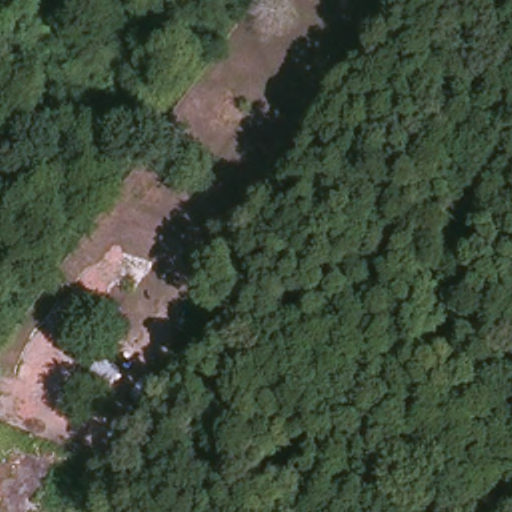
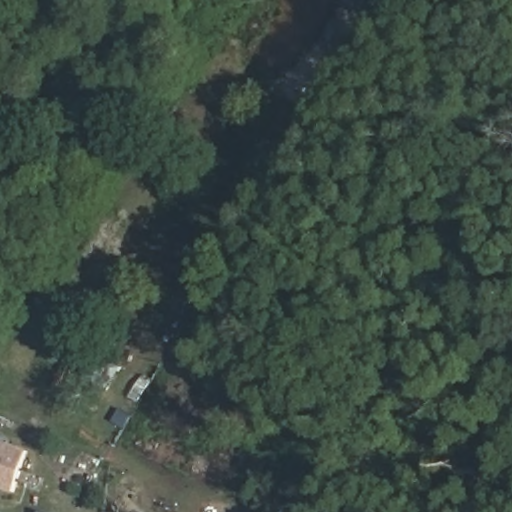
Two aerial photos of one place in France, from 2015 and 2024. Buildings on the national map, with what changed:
unchanged [(109,389),(85,375),(97,353),(121,367),(109,389)]
new [(0,489),(0,441),(29,451),(14,493),(0,489)]

